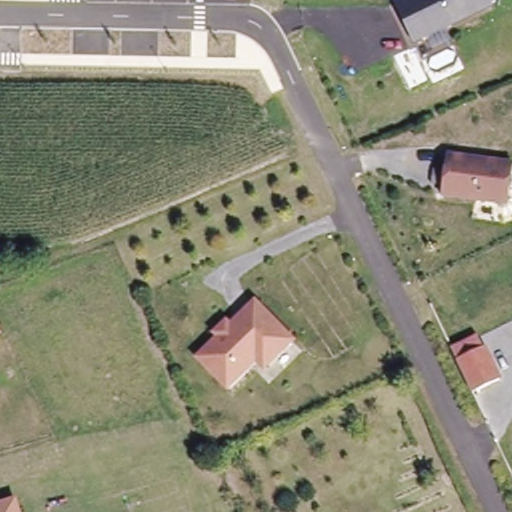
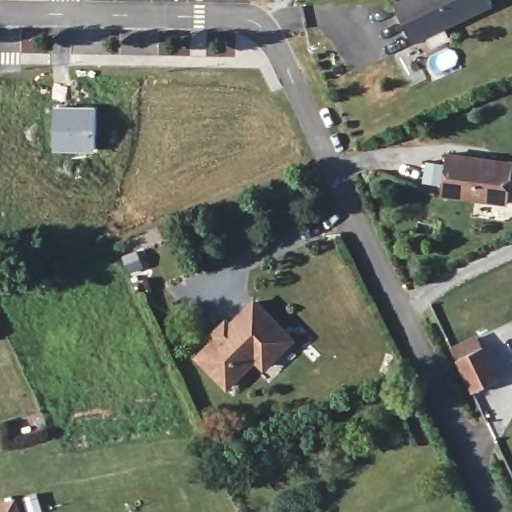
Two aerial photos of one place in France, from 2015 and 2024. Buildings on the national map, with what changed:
unchanged [(411,41),(392,5),(401,0),(490,0),(411,41)]
new [(96,106),(96,152),(52,152),(52,107),(96,106)]
unchanged [(441,194),(446,152),(512,164),(512,171),(507,205),(441,194)]
unchanged [(292,344),(263,372),(255,363),(225,390),(197,360),(218,340),(214,335),(227,323),(230,330),(256,306),(292,344)]
unchanged [(0,332),(0,330),(1,332),(0,332)]
unchanged [(480,339),(501,381),(473,395),(453,353),(480,339)]
unchanged [(0,512),(0,510),(20,505),(22,512),(0,512)]

